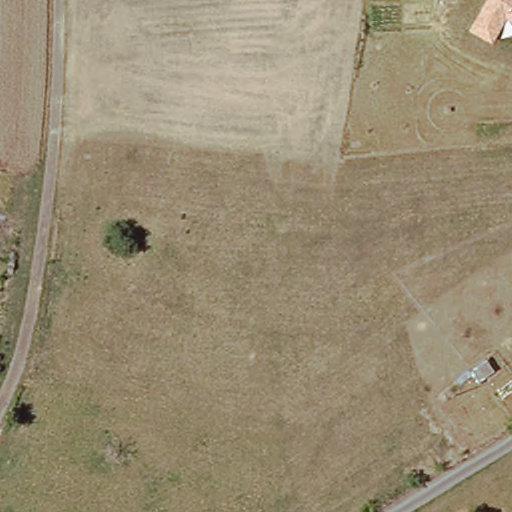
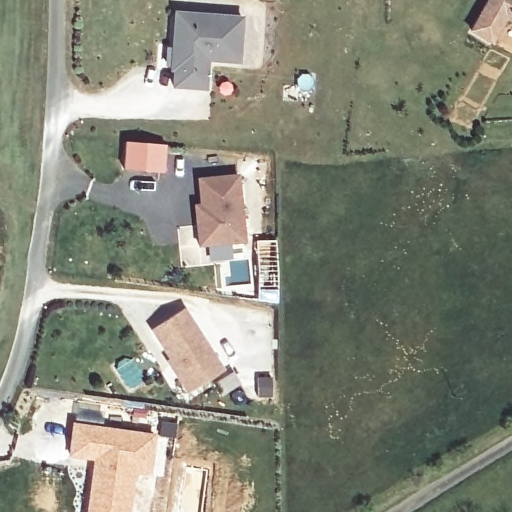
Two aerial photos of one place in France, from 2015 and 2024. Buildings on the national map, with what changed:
unchanged [(506,20),(492,45),(468,31),(487,0),(512,0),(512,23),(506,20)]
new [(242,64),(210,62),(207,92),(172,89),(173,69),(170,69),(174,11),(245,15),(242,64)]
unchanged [(246,243),(199,248),(193,204),(200,203),(196,176),(240,171),(246,243)]
new [(225,369),(185,393),(166,361),(170,358),(151,328),(185,307),(225,369)]
new [(157,434),(152,478),(137,476),(131,512),(84,512),(91,460),(66,456),(71,420),(157,434)]

